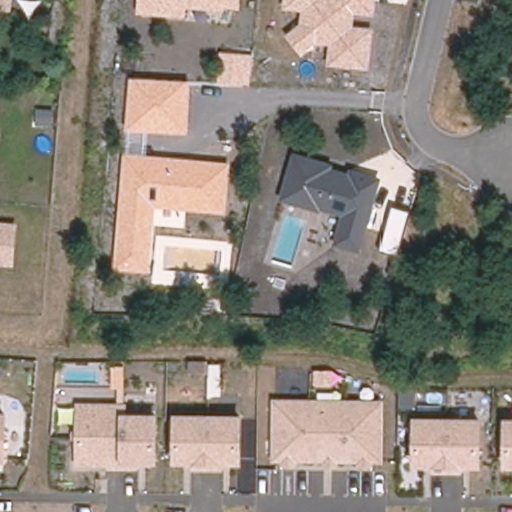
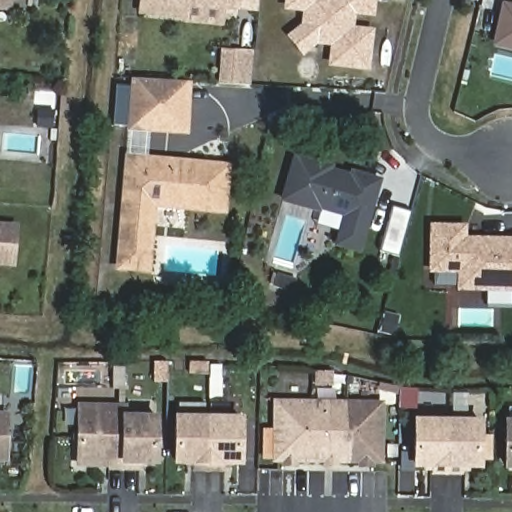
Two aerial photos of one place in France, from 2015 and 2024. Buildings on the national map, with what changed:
unchanged [(12,11),(0,10),(0,0),(13,0),(12,11)]
unchanged [(136,14),(137,0),(253,0),(252,10),(225,7),(225,12),(185,10),(185,17),(136,14)]
unchanged [(353,26),(373,29),(368,70),(326,66),(328,45),(315,43),(301,56),(285,36),(300,23),(301,11),(282,9),(283,0),(375,0),(373,16),(355,14),(353,26)]
new [(493,45),(502,2),(512,4),(512,49),(493,45)]
unchanged [(250,86),(216,84),(220,52),(252,55),(250,86)]
unchanged [(187,134),(125,130),(129,78),(190,81),(187,134)]
unchanged [(225,214),(155,207),(150,272),(114,270),(124,154),(230,163),(225,214)]
unchanged [(346,172),(347,169),(381,178),(360,254),(332,246),(340,216),(320,210),(319,212),(278,201),(291,154),(333,165),(332,169),(346,172)]
new [(390,209),(408,215),(395,260),(376,255),(390,209)]
unchanged [(0,264),(0,221),(19,222),(16,266),(0,264)]
new [(429,224),(466,224),(466,237),(511,237),(512,237),(512,292),(456,291),(456,273),(427,273),(429,224)]
unchanged [(385,400),(383,463),(375,463),(375,470),(358,469),(358,463),(340,462),(340,469),(323,469),(323,462),(300,462),(300,468),(283,468),(283,462),(271,462),(272,398),(385,400)]
unchanged [(130,413),(160,414),(160,463),(140,463),(141,470),(109,471),(108,467),(77,467),(76,402),(128,403),(130,413)]
unchanged [(10,461),(0,461),(0,412),(9,412),(10,461)]
unchanged [(244,465),(220,464),(220,470),(192,470),(192,463),(172,463),(174,414),(245,416),(244,465)]
unchanged [(485,468),(464,467),(463,475),(430,474),(429,467),(415,467),(415,416),(483,418),(485,468)]
unchanged [(512,418),(512,468),(509,468),(506,418),(512,418)]

